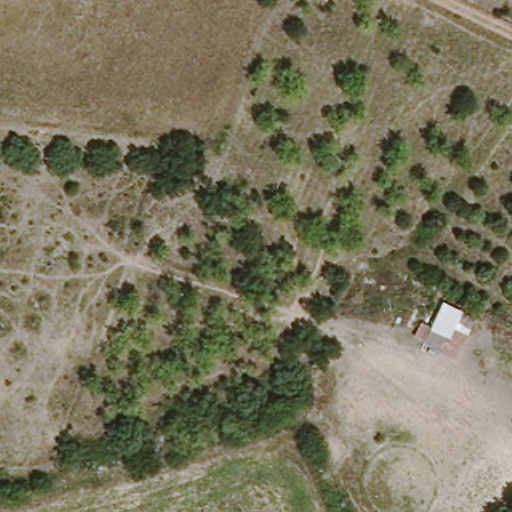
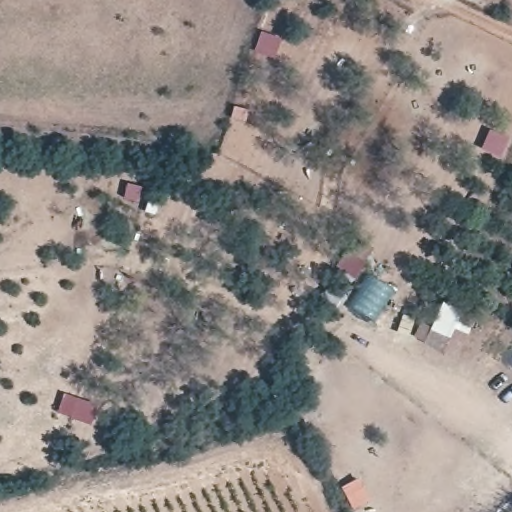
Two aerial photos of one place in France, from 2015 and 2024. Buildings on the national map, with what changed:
unchanged [(479,317),(469,340),(459,334),(446,357),(422,346),(444,302),(479,317)]

